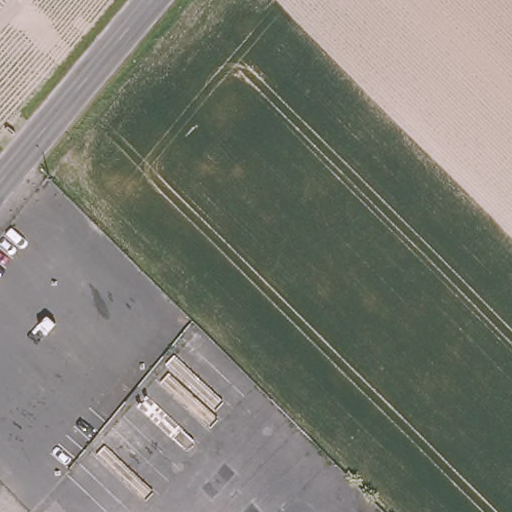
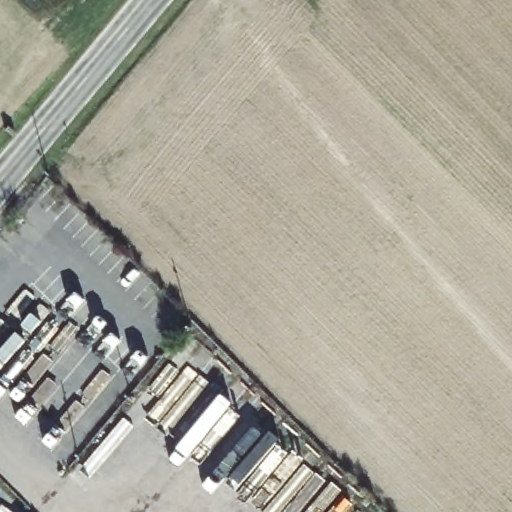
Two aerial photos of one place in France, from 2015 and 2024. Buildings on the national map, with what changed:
[]

